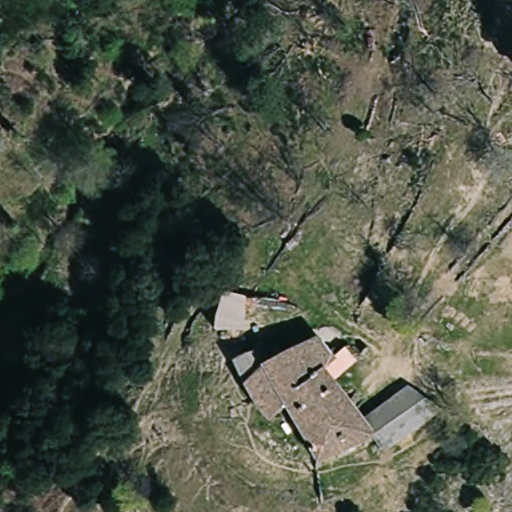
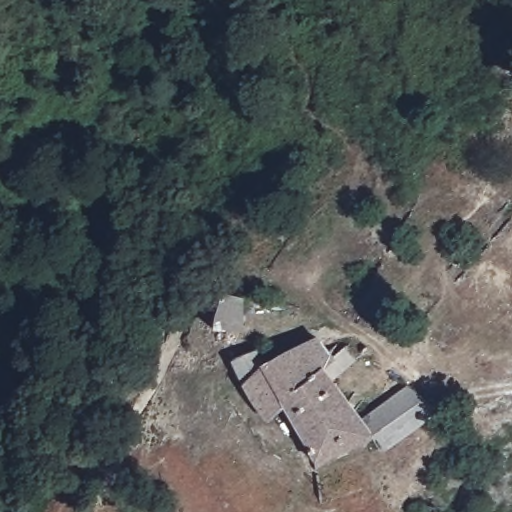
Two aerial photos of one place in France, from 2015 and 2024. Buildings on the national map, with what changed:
unchanged [(434,419),(383,455),(374,439),(318,466),(287,408),(268,422),(228,359),(256,342),(269,359),(319,335),(337,360),(330,365),(364,415),(410,383),(434,419)]

